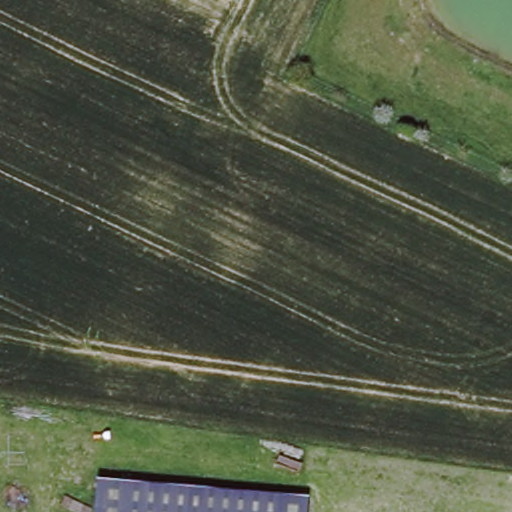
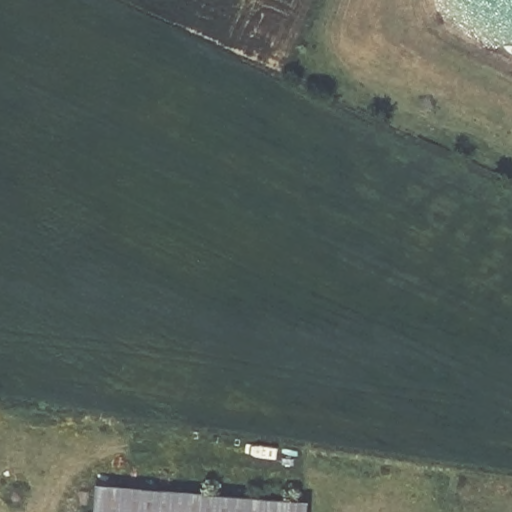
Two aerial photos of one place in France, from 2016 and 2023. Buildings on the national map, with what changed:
unchanged [(95,478),(306,502),(305,512),(92,512),(95,478)]

